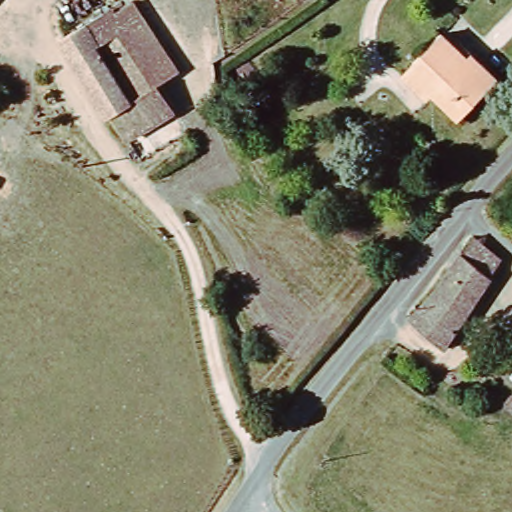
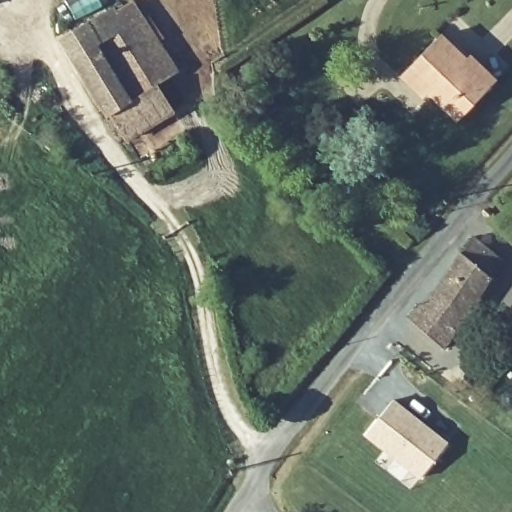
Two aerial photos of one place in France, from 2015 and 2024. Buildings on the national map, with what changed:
unchanged [(149,80),(97,112),(49,44),(120,0),(126,0),(169,67),(149,80)]
unchanged [(396,78),(405,67),(431,38),(460,61),(463,58),(490,81),(483,89),(456,120),(429,97),(426,101),(396,78)]
unchanged [(97,112),(149,80),(170,110),(118,143),(97,112)]
unchanged [(405,313),(456,250),(487,273),(440,336),(405,313)]
new [(393,398),(448,442),(419,478),(365,436),(393,398)]

